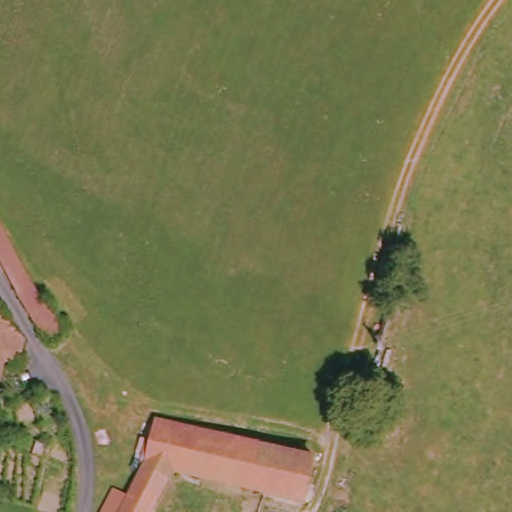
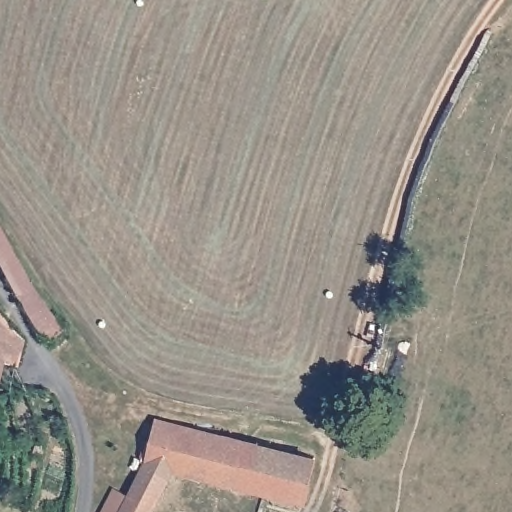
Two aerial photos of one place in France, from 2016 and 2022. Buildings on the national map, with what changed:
unchanged [(18,297),(0,263),(0,229),(38,297),(63,326),(47,345),(18,297)]
unchanged [(30,341),(21,365),(8,362),(2,381),(0,380),(0,301),(30,341)]
unchanged [(157,423),(314,457),(302,499),(162,465),(147,462),(157,423)]
unchanged [(129,497),(130,495),(147,462),(162,465),(157,481),(154,489),(157,491),(147,512),(104,512),(117,489),(129,497)]

